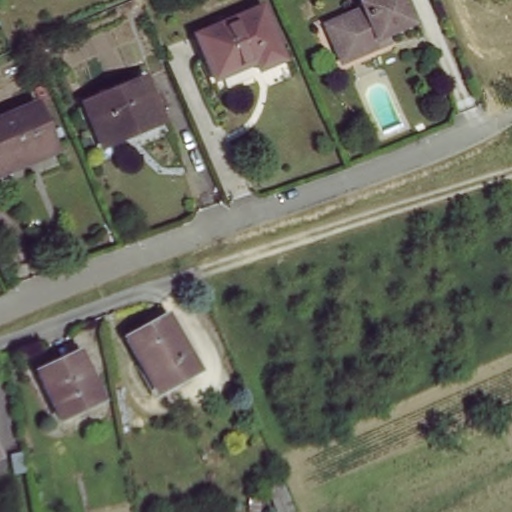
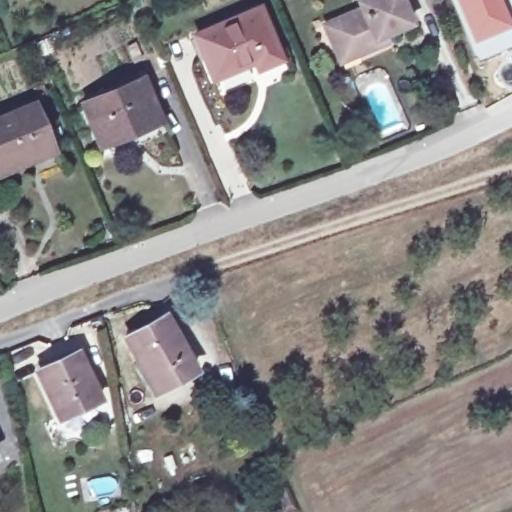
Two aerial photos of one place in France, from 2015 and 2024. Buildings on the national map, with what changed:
unchanged [(317,23),(354,8),(352,2),(357,0),(396,0),(405,24),(375,36),(378,42),(353,52),(333,61),(328,49),(317,23)]
new [(512,28),(472,44),(453,0),(504,0),(512,23),(512,28)]
new [(512,0),(512,23),(504,0),(512,0)]
unchanged [(263,9),(284,57),(267,65),(264,59),(217,76),(199,36),(263,9)]
new [(512,47),(479,60),(472,44),(512,28),(512,47)]
unchanged [(147,78),(163,116),(99,143),(85,103),(147,78)]
unchanged [(40,106),(58,151),(37,159),(35,156),(0,170),(0,123),(40,106)]
unchanged [(170,311),(200,364),(158,387),(127,333),(170,311)]
unchanged [(83,349),(102,397),(62,416),(42,369),(83,349)]
new [(281,481),(294,512),(275,512),(265,488),(281,481)]

